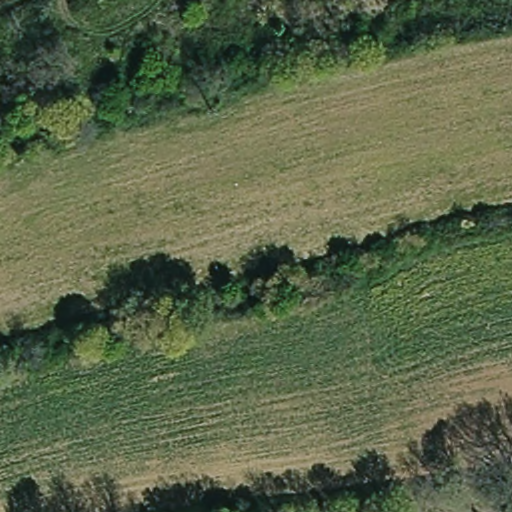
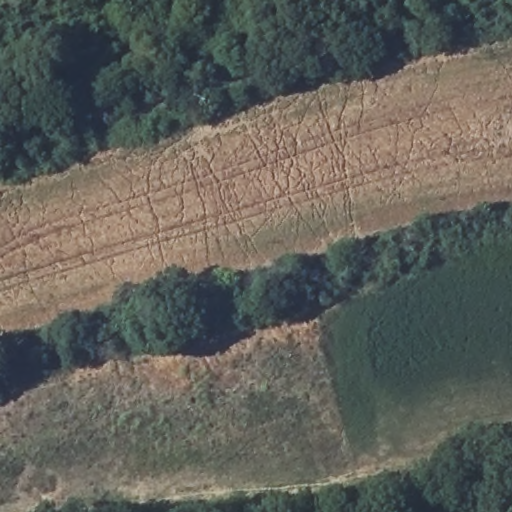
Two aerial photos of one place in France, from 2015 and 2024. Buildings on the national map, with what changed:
[]

